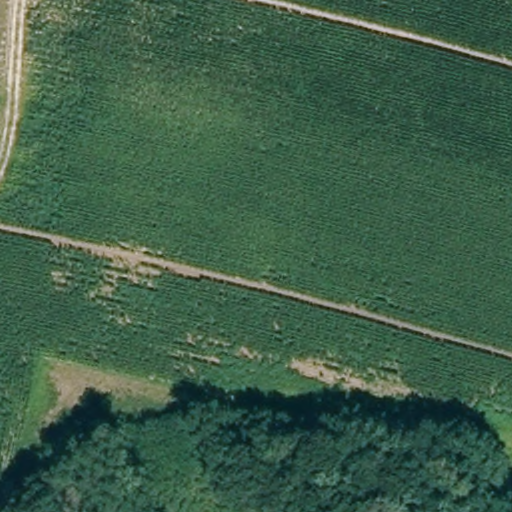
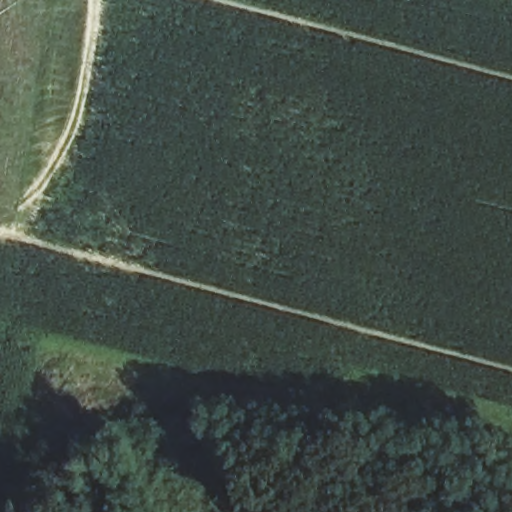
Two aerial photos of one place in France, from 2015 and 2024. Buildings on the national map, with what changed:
[]

